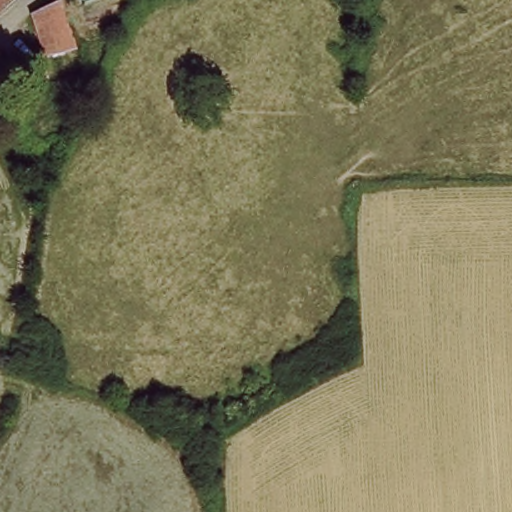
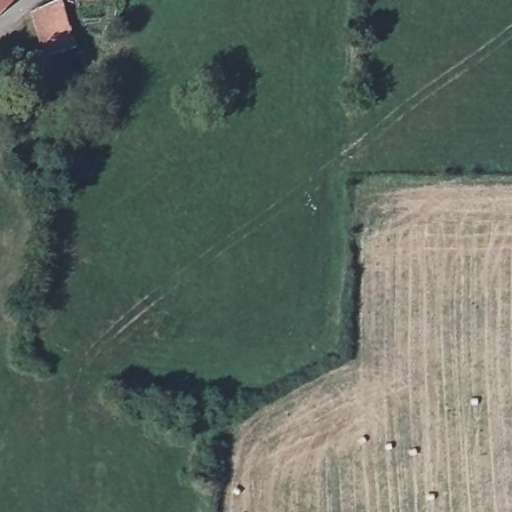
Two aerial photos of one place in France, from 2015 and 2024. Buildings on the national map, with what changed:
unchanged [(0,13),(0,0),(13,0),(0,13)]
unchanged [(68,5),(80,45),(52,54),(41,12),(43,10),(68,5)]

